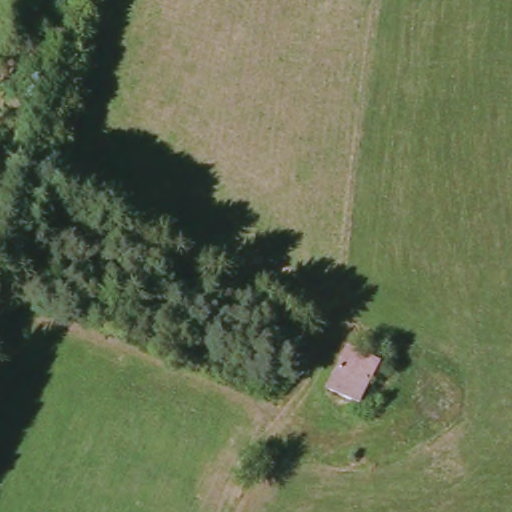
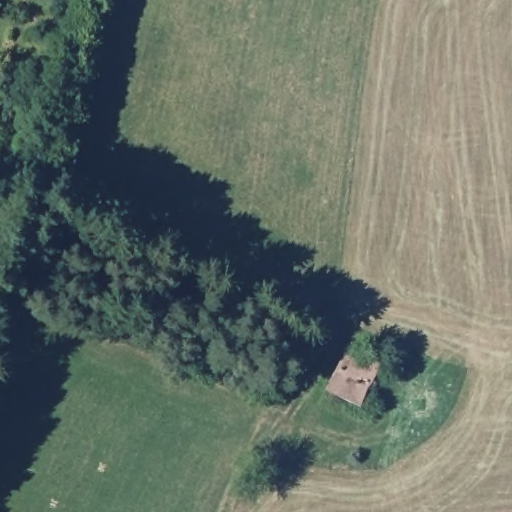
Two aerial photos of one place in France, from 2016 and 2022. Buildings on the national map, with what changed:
unchanged [(365,411),(332,387),(352,345),(386,362),(365,411)]

